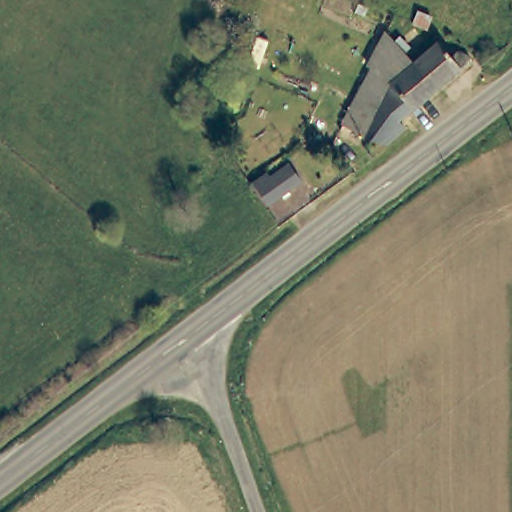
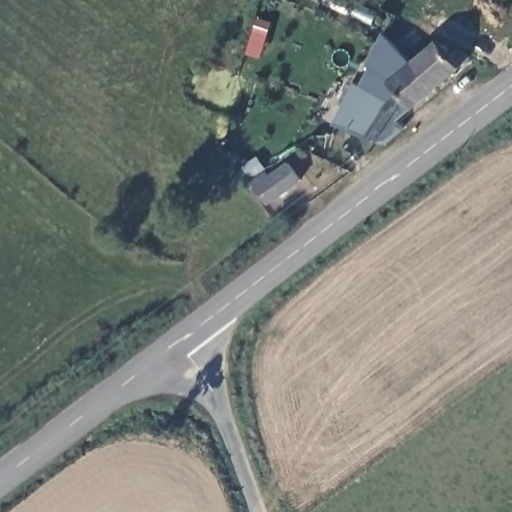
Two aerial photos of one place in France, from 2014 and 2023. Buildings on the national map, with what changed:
unchanged [(371,145),(367,154),(351,149),(357,135),(336,126),(352,88),(380,30),(408,59),(410,58),(415,64),(435,47),(450,55),(452,50),(465,58),(430,89),(402,111),(390,122),(397,131),(376,148),(371,145)]
unchanged [(242,185),(255,175),(260,180),(278,164),(292,180),(258,206),(242,185)]

